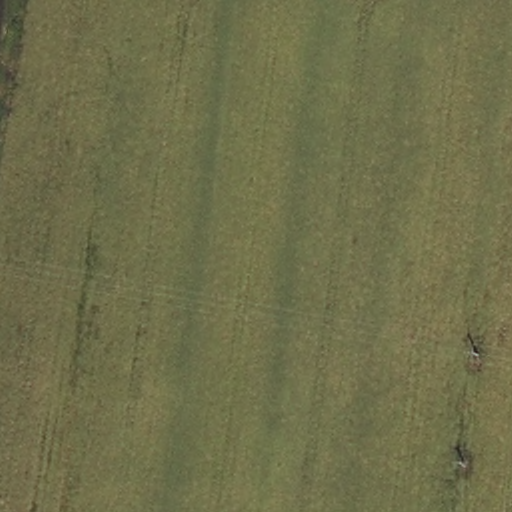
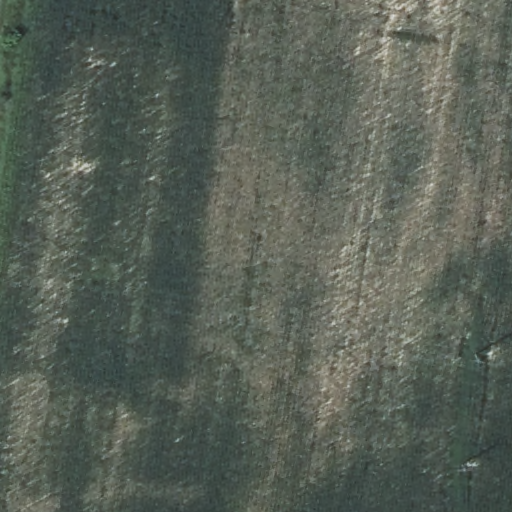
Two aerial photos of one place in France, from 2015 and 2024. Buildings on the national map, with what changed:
[]

